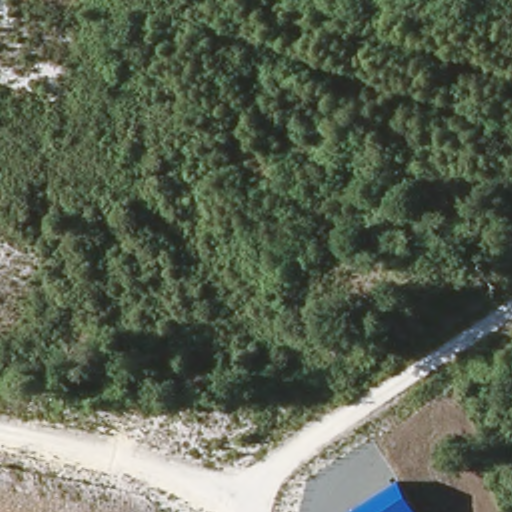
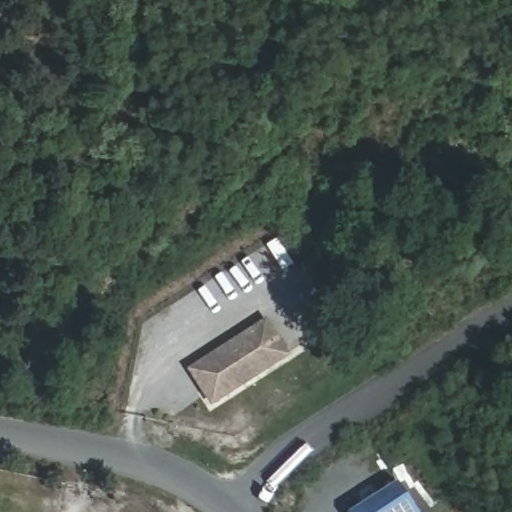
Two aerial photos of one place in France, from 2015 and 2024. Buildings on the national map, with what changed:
new [(267,317),(290,355),(211,405),(188,367),(267,317)]
new [(400,478),(421,512),(351,512),(350,511),(400,478)]

